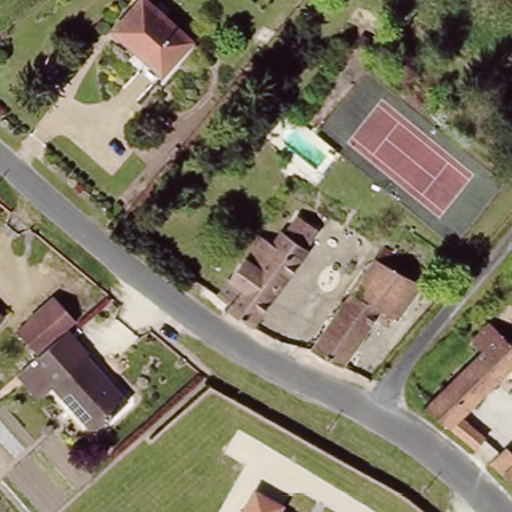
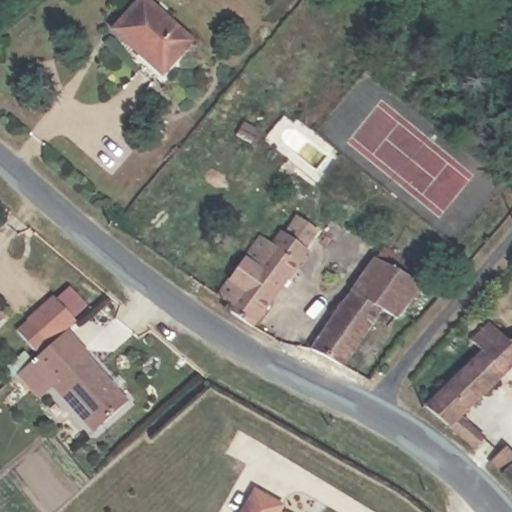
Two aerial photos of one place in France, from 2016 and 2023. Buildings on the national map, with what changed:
unchanged [(182,43),(157,74),(107,33),(132,3),(182,43)]
unchanged [(229,293),(216,283),(257,227),(270,237),(229,293)]
unchanged [(220,305),(229,293),(270,237),(277,227),(282,228),(306,246),(249,324),(220,305)]
unchanged [(387,321),(373,310),(345,289),(372,250),(374,248),(417,282),(387,321)]
unchanged [(297,355),(345,289),(373,310),(329,370),(297,355)]
unchanged [(135,403),(91,438),(54,393),(41,402),(18,372),(41,359),(18,327),(57,292),(135,403)]
unchanged [(0,325),(0,308),(9,317),(0,325)]
unchanged [(442,427),(420,407),(477,344),(466,334),(485,313),(512,340),(512,353),(452,417),(476,439),(466,449),(442,427)]
unchanged [(511,460),(512,459),(512,492),(495,476),(482,464),(497,448),(511,460)]
unchanged [(278,512),(241,512),(254,488),(282,504),(278,512)]

